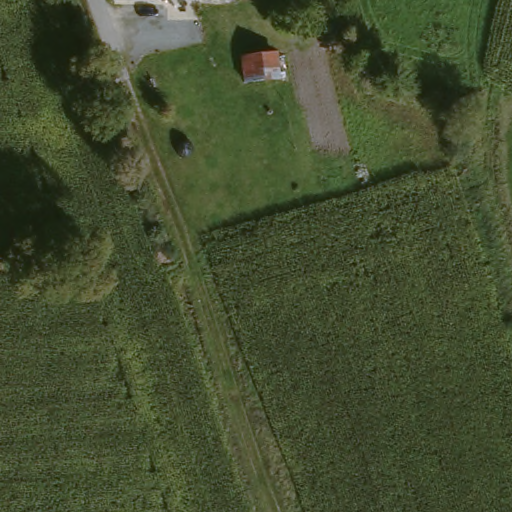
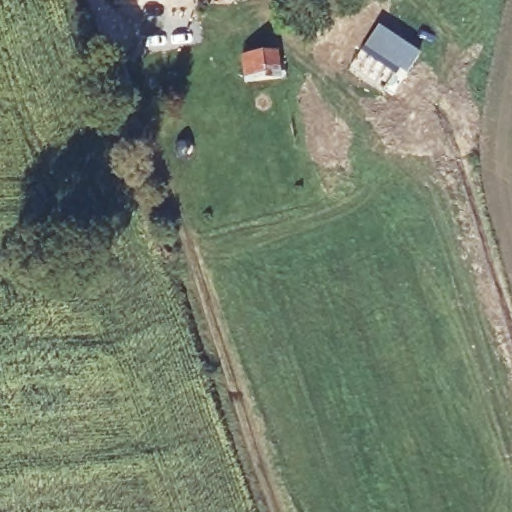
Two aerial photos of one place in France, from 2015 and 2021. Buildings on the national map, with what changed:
unchanged [(116,7),(113,0),(197,0),(197,2),(116,7)]
unchanged [(233,0),(234,1),(197,2),(197,0),(233,0)]
new [(418,55),(406,74),(365,47),(378,27),(418,55)]
unchanged [(270,57),(271,79),(239,80),(239,58),(270,57)]

